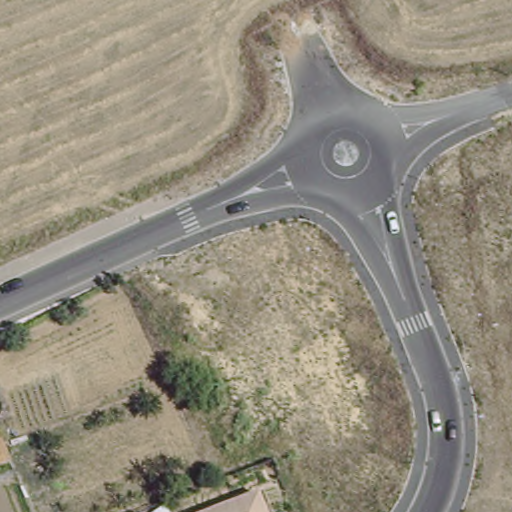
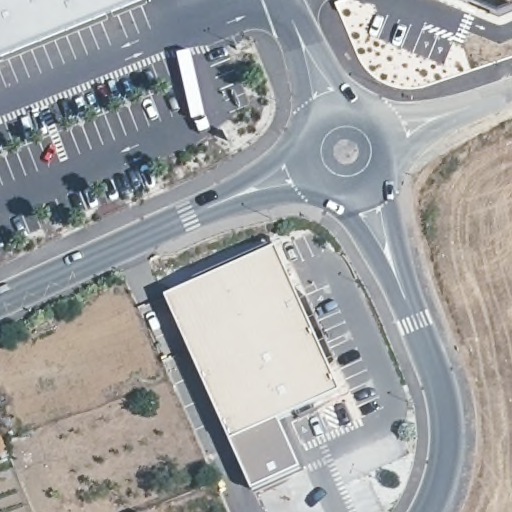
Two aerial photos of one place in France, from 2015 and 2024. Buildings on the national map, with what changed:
unchanged [(0,0),(147,0),(0,59),(0,0)]
new [(457,0),(465,0),(464,3),(457,0)]
new [(342,391),(232,441),(167,297),(277,248),(342,391)]
new [(232,441),(280,419),(302,468),(252,490),(232,441)]
unchanged [(7,459),(0,462),(0,437),(3,438),(7,459)]
unchanged [(258,492),(266,512),(202,512),(258,492)]

